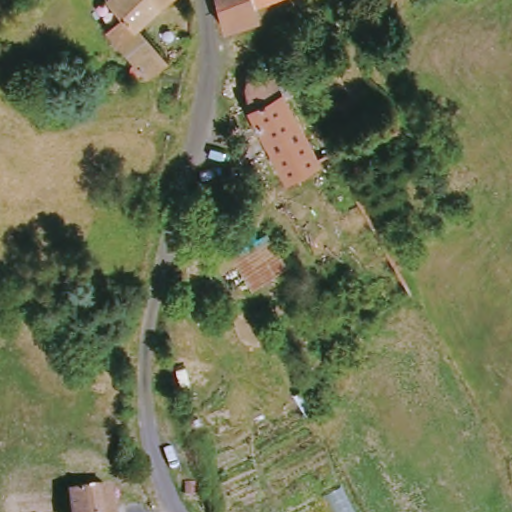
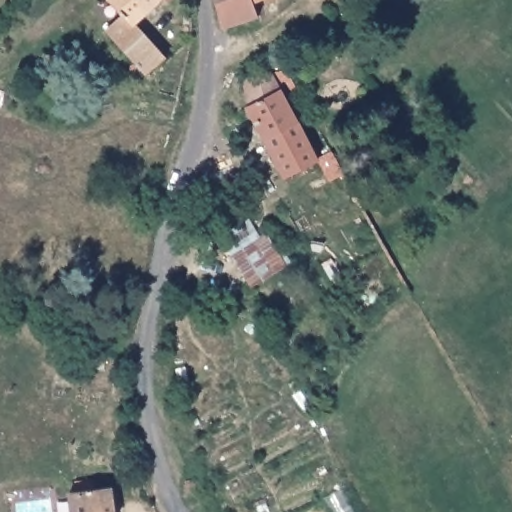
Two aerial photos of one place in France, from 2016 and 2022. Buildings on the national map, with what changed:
unchanged [(141,32),(173,66),(150,82),(145,77),(136,82),(131,80),(133,71),(136,67),(110,35),(129,21),(113,0),(179,0),(141,32)]
unchanged [(254,13),(231,24),(227,25),(218,0),(254,0),(254,13)]
unchanged [(371,12),(360,21),(348,9),(359,0),(362,0),(371,12)]
unchanged [(261,129),(253,132),(244,115),(250,110),(246,96),(248,83),(274,74),(324,156),(290,179),(281,164),(261,129)]
unchanged [(254,288),(235,254),(265,235),(288,268),(254,288)]
unchanged [(116,485),(121,512),(77,512),(74,493),(116,485)]

